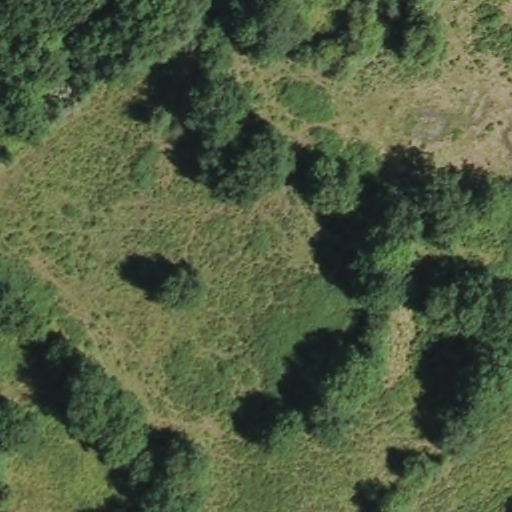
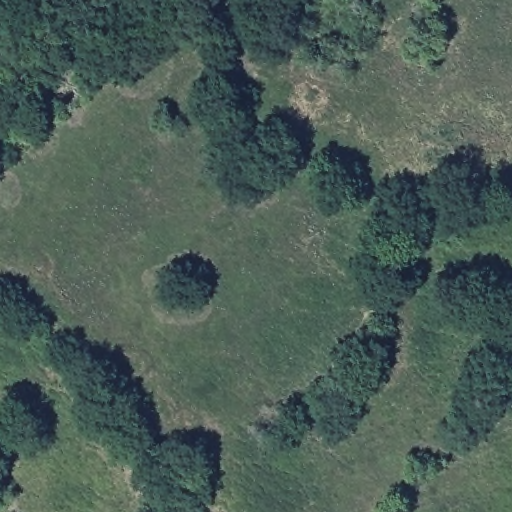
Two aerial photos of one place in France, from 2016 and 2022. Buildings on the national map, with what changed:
[]

